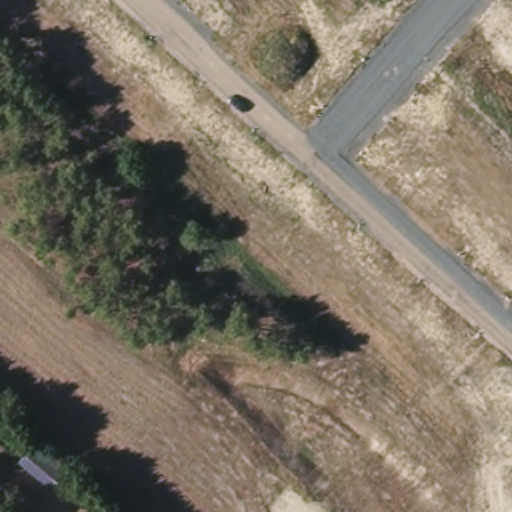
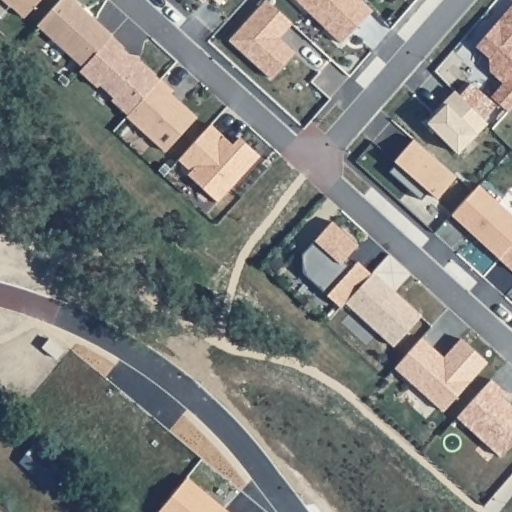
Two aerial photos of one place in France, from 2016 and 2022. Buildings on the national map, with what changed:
new [(0,0),(40,0),(22,19),(0,0)]
new [(97,25),(111,36),(110,37),(82,68),(36,26),(59,0),(70,0),(80,9),(97,25)]
new [(199,0),(209,0),(205,5),(199,0)]
new [(213,0),(226,0),(221,6),(213,0)]
new [(266,0),(292,23),(278,37),(293,52),(270,77),(229,40),(265,0),(266,0)]
new [(362,0),(372,10),(361,21),(341,43),(323,26),(310,13),(296,0),(362,0)]
new [(490,70),(489,58),(476,46),(512,4),(512,90),(490,70)]
new [(82,68),(110,37),(122,48),(121,50),(127,56),(138,58),(137,62),(158,80),(126,116),(110,101),(112,98),(97,85),(95,88),(78,72),(82,68)]
new [(126,116),(158,80),(171,92),(169,95),(195,118),(164,153),(125,117),(126,116)]
new [(435,111),(443,102),(455,90),(487,123),(457,153),(427,123),(437,113),(435,111)]
new [(191,171),(178,159),(210,124),(229,141),(236,134),(259,156),(206,214),(176,188),(191,171)]
new [(394,161),(406,146),(413,138),(427,150),(456,176),(437,198),(428,191),(421,200),(388,171),(396,163),(394,161)]
new [(451,215),(478,185),(512,215),(512,245),(500,258),(478,239),(464,226),(451,215)]
new [(357,245),(346,257),(353,265),(357,262),(371,274),(345,302),(340,307),(302,273),(301,254),(331,221),(357,245)]
new [(512,245),(512,270),(500,258),(512,245)]
new [(372,272),(385,283),(405,301),(420,315),(392,346),(345,302),(371,274),(372,272)]
new [(442,410),(431,400),(394,367),(421,337),(435,350),(443,358),(461,339),(477,353),(486,362),(442,410)]
new [(50,341),(65,353),(57,361),(43,350),(50,341)]

